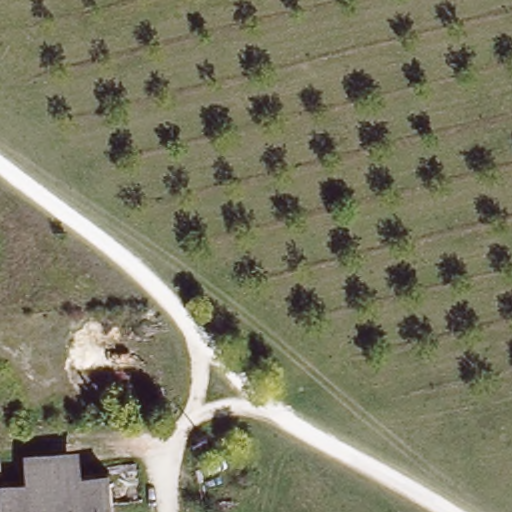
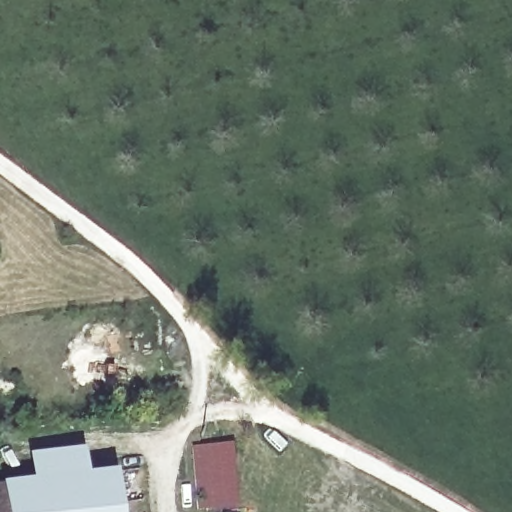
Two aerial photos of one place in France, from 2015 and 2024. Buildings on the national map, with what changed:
new [(201,512),(197,512),(191,449),(232,445),(237,508),(201,512)]
unchanged [(0,484),(2,483),(30,480),(27,455),(83,449),(86,473),(113,470),(118,512),(0,512),(0,484)]

